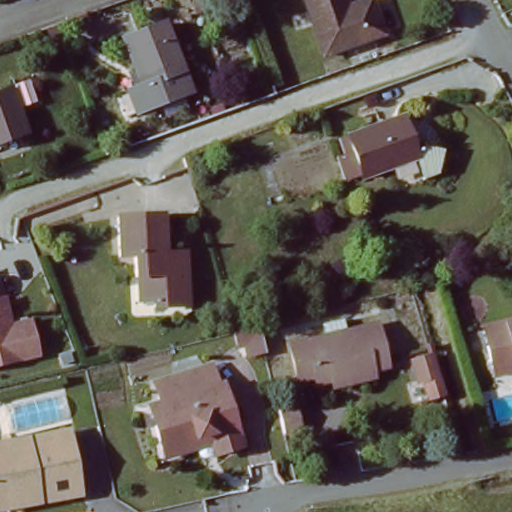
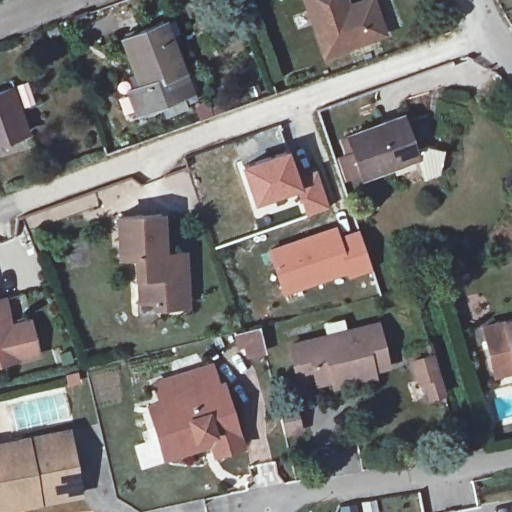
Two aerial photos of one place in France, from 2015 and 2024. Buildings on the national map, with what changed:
unchanged [(341,9),(366,0),(371,0),(384,34),(323,54),(302,0),(338,0),(341,9)]
unchanged [(164,20),(184,67),(170,71),(180,96),(133,114),(124,88),(144,80),(124,36),(164,20)]
unchanged [(25,134),(0,143),(0,88),(7,86),(25,134)]
unchanged [(402,119),(418,159),(363,179),(348,137),(402,119)]
new [(288,146),(297,172),(302,185),(296,188),(253,202),(239,164),(288,146)]
new [(302,185),(297,172),(316,166),(330,206),(306,215),(296,188),(302,185)]
unchanged [(153,312),(150,283),(134,285),(131,264),(116,263),(114,215),(166,213),(168,253),(190,252),(192,311),(153,312)]
new [(337,223),(340,234),(359,227),(373,270),(346,280),(345,275),(283,295),(266,247),(337,223)]
unchanged [(0,364),(0,297),(4,296),(11,325),(31,320),(40,353),(0,364)]
unchanged [(382,318),(398,365),(379,370),(328,382),(315,386),(313,378),(292,383),(283,346),(382,318)]
unchanged [(512,318),(512,363),(488,370),(476,328),(512,318)]
new [(260,325),(266,356),(246,361),(241,348),(238,350),(233,332),(260,325)]
new [(448,399),(434,403),(428,385),(423,386),(416,361),(435,355),(448,399)]
unchanged [(208,369),(211,388),(232,385),(245,454),(215,460),(213,447),(211,435),(191,439),(193,451),(172,455),(170,445),(156,448),(149,421),(159,419),(155,405),(149,380),(208,369)]
unchanged [(0,445),(63,428),(80,491),(0,511),(0,445)]

